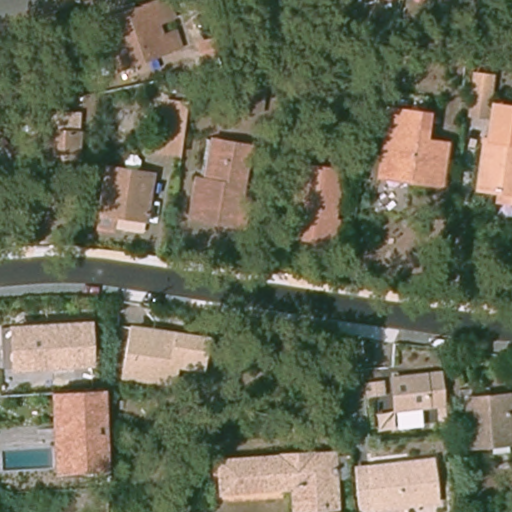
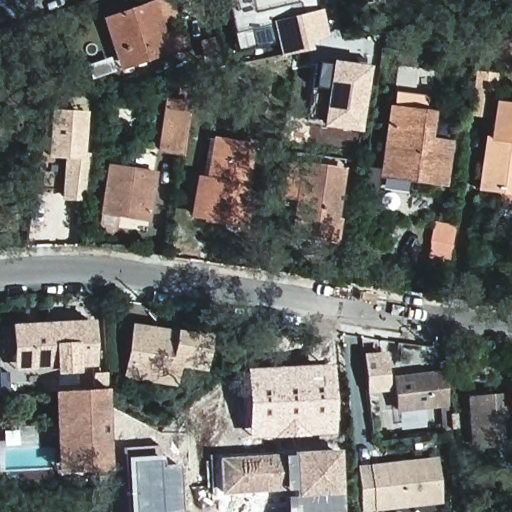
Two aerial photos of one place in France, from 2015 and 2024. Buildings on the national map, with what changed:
unchanged [(104,17),(111,15),(165,0),(169,0),(174,18),(159,22),(162,34),(179,30),(183,46),(130,61),(116,65),(104,17)]
new [(272,41),(236,51),(223,0),(315,0),(325,35),(307,40),(309,49),(276,57),(272,41)]
new [(319,126),(325,89),(312,87),(316,61),(329,63),(330,59),(370,66),(358,133),(319,126)]
unchanged [(270,112),(250,109),(256,81),(275,83),(270,112)]
unchanged [(487,110),(475,110),(477,81),(489,81),(487,110)]
unchanged [(181,142),(180,154),(158,151),(165,101),(186,104),(181,142)]
unchanged [(384,167),(395,112),(431,117),(427,140),(450,144),(443,187),(410,182),(382,178),(384,167)]
unchanged [(77,154),(49,151),(55,114),(83,117),(77,154)]
unchanged [(504,188),(478,185),(484,139),(489,139),(491,123),(512,125),(512,199),(502,198),(504,188)]
unchanged [(244,199),(251,200),(247,228),(194,219),(201,178),(207,179),(214,139),(225,141),(252,145),(244,199)]
unchanged [(292,169),(297,140),(308,142),(304,171),(292,169)]
unchanged [(342,224),(338,244),(292,237),(303,185),(307,168),(344,174),(341,190),(335,223),(342,224)]
unchanged [(117,220),(99,217),(107,169),(153,177),(146,217),(145,225),(117,220)]
unchanged [(93,318),(96,367),(12,371),(12,322),(93,318)]
unchanged [(175,328),(211,334),(205,369),(178,365),(175,385),(120,376),(129,321),(175,328)]
new [(386,351),(390,377),(388,377),(389,391),(366,392),(362,353),(386,351)]
new [(243,368),(329,364),(333,433),(246,437),(243,368)]
unchanged [(390,409),(388,377),(439,375),(439,386),(440,406),(390,409)]
unchanged [(107,389),(109,468),(75,469),(70,391),(107,389)]
unchanged [(466,395),(468,395),(485,394),(512,392),(512,440),(469,442),(466,395)]
new [(159,455),(161,455),(162,465),(176,464),(179,512),(125,512),(121,447),(159,445),(159,455)]
unchanged [(340,512),(292,512),(292,489),(221,494),(216,457),(336,448),(340,512)]
unchanged [(436,498),(422,499),(374,504),(369,464),(421,458),(432,457),(436,498)]

